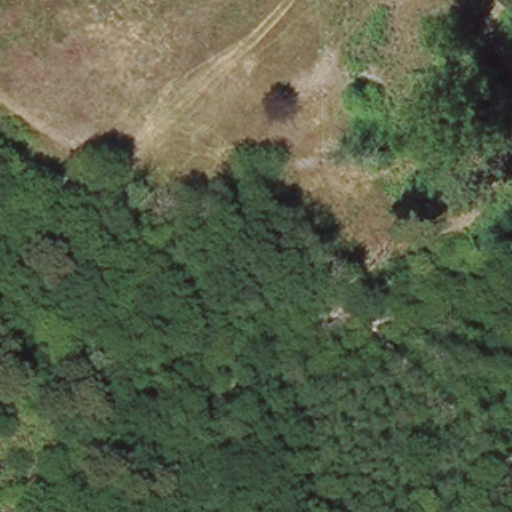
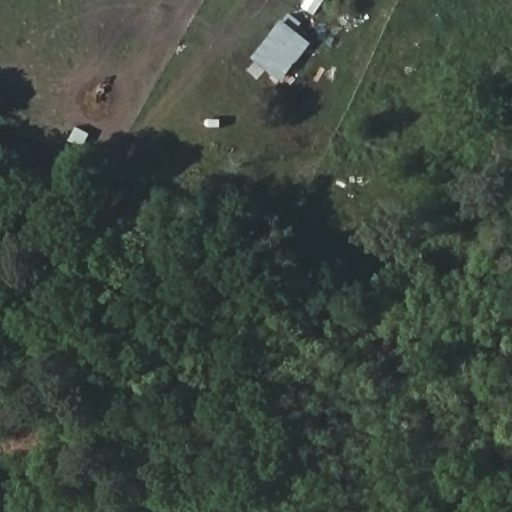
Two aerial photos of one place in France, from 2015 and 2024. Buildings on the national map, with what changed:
new [(283,23),(311,43),(284,79),(254,59),(283,23)]

